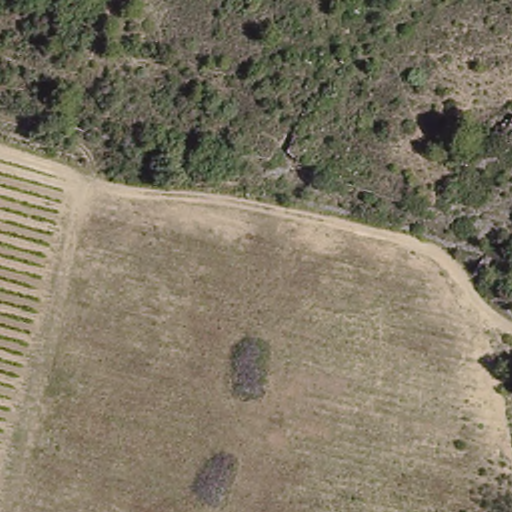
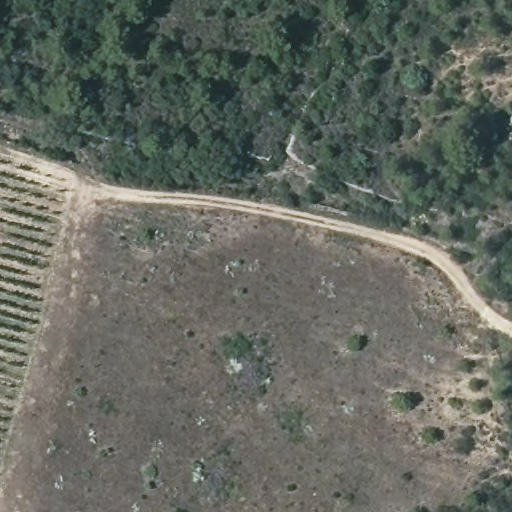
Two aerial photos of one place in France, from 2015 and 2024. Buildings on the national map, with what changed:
[]

